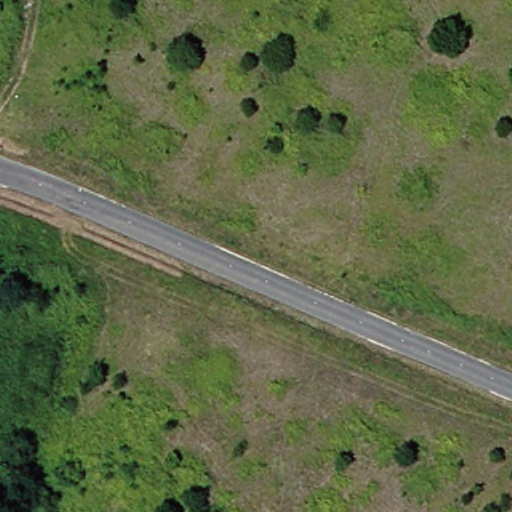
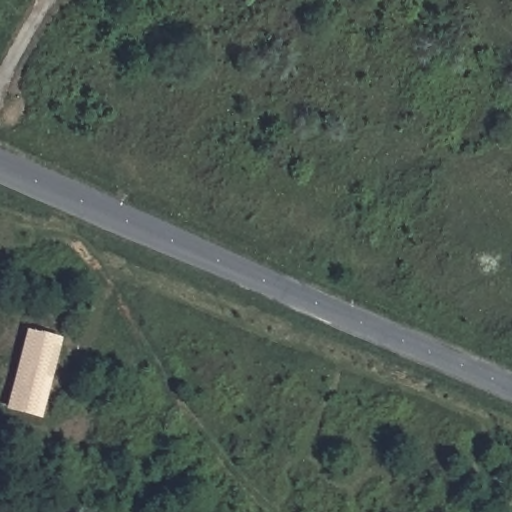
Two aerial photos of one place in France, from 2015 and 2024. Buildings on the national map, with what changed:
new [(44,420),(8,410),(28,330),(65,338),(44,420)]

